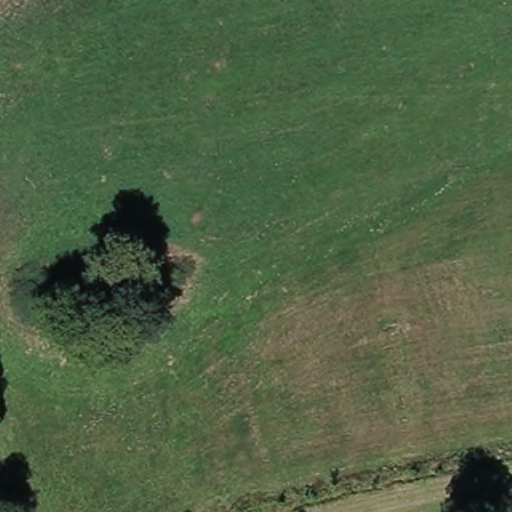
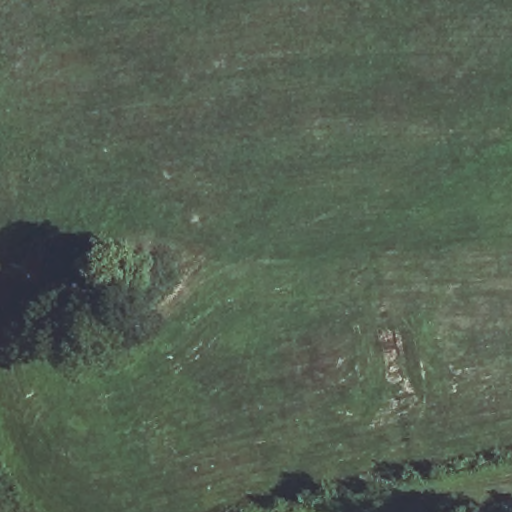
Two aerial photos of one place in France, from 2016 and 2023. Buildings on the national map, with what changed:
[]

